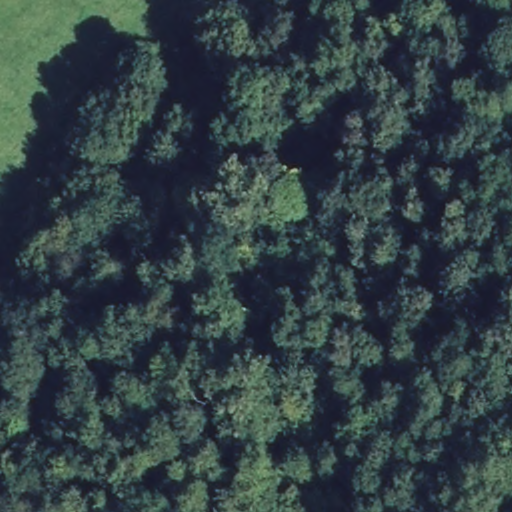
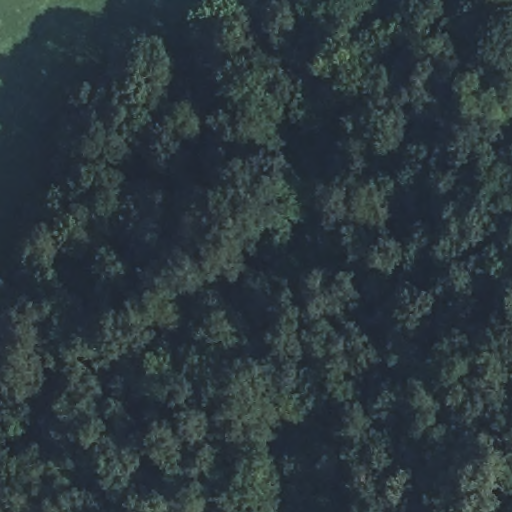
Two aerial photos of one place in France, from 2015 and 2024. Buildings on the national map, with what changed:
[]

